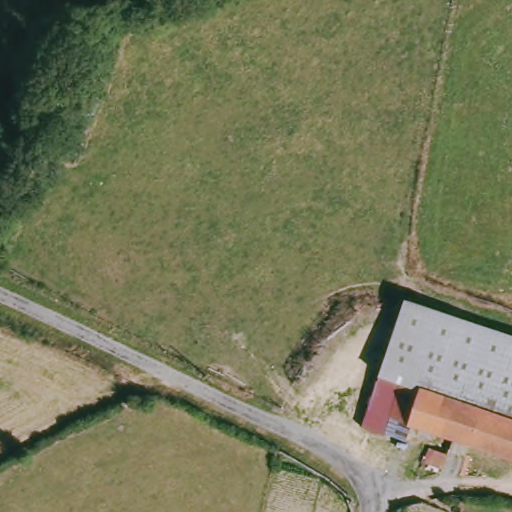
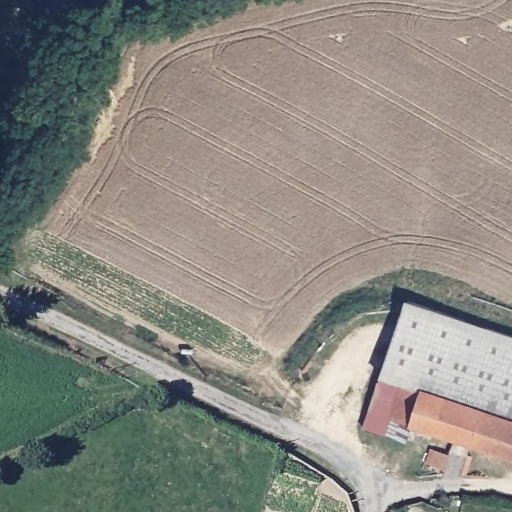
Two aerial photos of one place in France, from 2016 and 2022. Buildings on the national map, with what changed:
unchanged [(423,429),(415,447),(388,438),(406,386),(384,377),(412,302),(512,336),(512,460),(423,429)]
unchanged [(453,456),(449,468),(434,462),(438,451),(453,456)]

